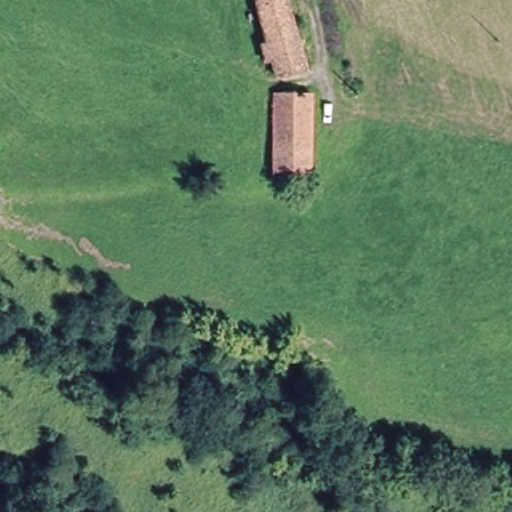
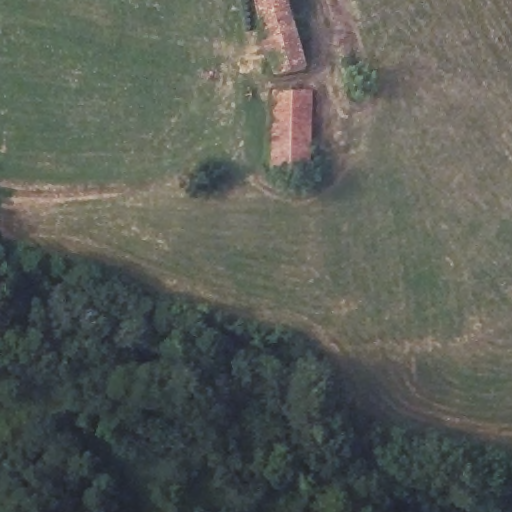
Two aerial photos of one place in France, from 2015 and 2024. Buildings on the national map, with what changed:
unchanged [(275,72),(274,59),(264,60),(262,35),(269,33),(264,0),(291,0),(304,67),(275,72)]
unchanged [(269,94),(308,94),(309,158),(324,158),(324,170),(270,170),(269,94)]

